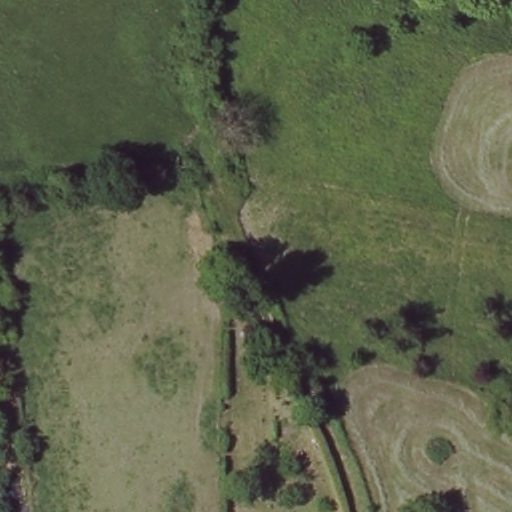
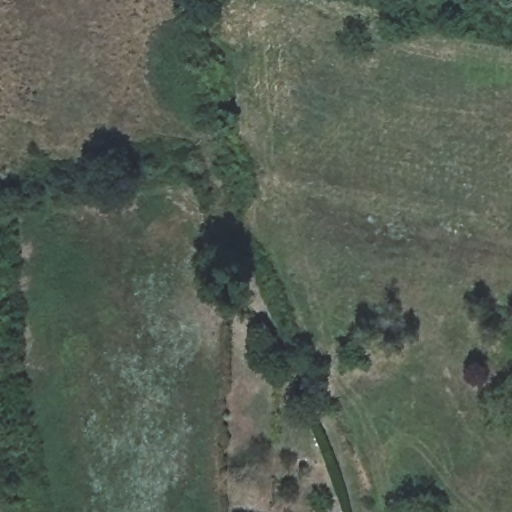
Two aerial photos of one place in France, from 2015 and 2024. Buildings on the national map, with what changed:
unchanged [(511,159),(512,159),(512,173),(510,173),(511,159)]

